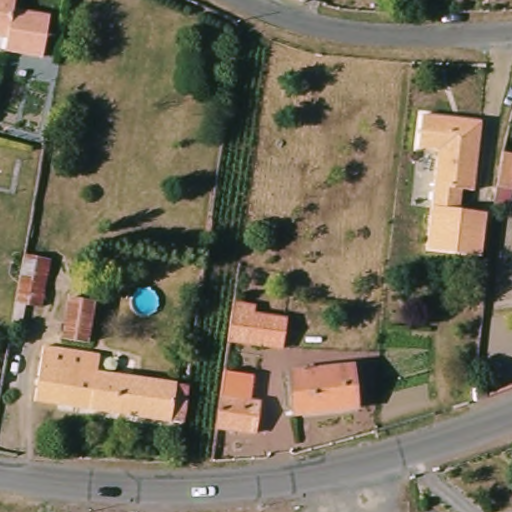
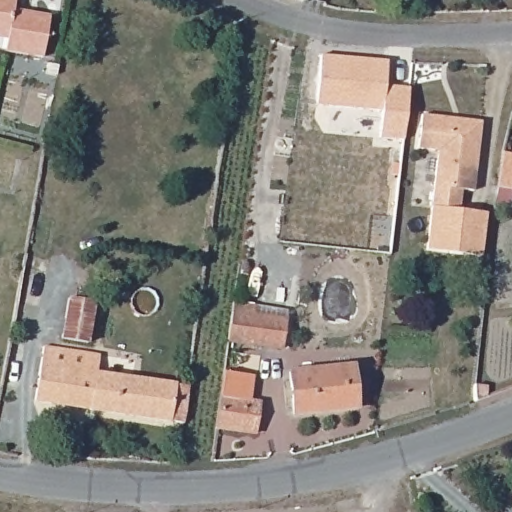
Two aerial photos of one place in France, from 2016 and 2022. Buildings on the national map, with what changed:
unchanged [(54,21),(46,62),(10,55),(12,44),(0,41),(0,0),(20,0),(18,15),(54,21)]
new [(386,84),(410,86),(404,140),(380,138),(383,109),(317,105),(321,54),(388,60),(386,84)]
unchanged [(479,189),(464,188),(462,207),(434,203),(441,149),(424,147),(427,114),(452,117),(465,119),(487,121),(479,189)]
unchanged [(512,163),(512,193),(512,198),(494,195),(498,161),(512,163)]
unchanged [(462,207),(486,209),(481,256),(428,251),(434,203),(462,207)]
unchanged [(13,315),(16,295),(25,247),(51,252),(43,299),(27,297),(23,317),(13,315)]
unchanged [(90,303),(84,344),(59,339),(65,299),(90,303)]
unchanged [(240,305),(239,310),(287,319),(282,348),(228,338),(232,315),(233,304),(240,305)]
unchanged [(23,339),(16,379),(1,377),(9,337),(23,339)]
unchanged [(184,428),(36,404),(45,351),(85,357),(101,359),(99,376),(189,390),(184,428)]
unchanged [(356,365),(361,407),(300,414),(294,372),(356,365)]
unchanged [(258,376),(256,402),(264,402),(260,434),(214,428),(224,371),(258,376)]
unchanged [(486,383),(491,394),(479,398),(476,387),(486,383)]

